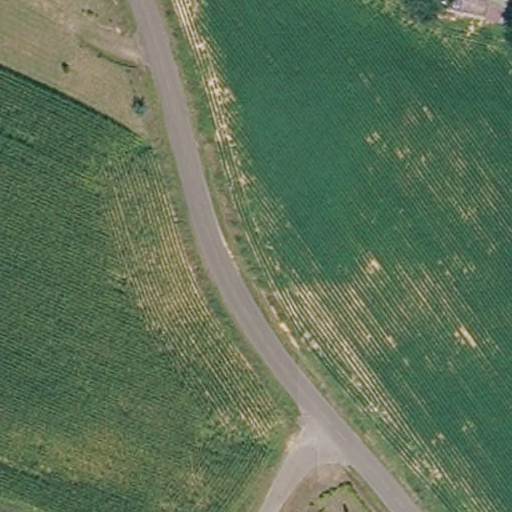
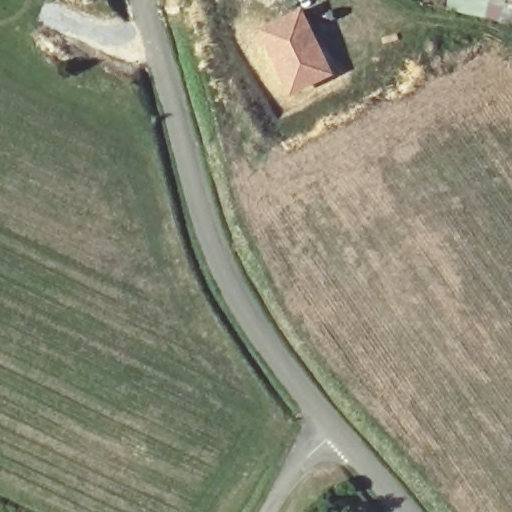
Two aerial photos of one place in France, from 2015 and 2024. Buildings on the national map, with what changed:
unchanged [(481,16),(485,2),(492,4),(493,0),(512,0),(512,26),(481,16)]
new [(300,5),(334,74),(286,97),(251,30),(300,5)]

